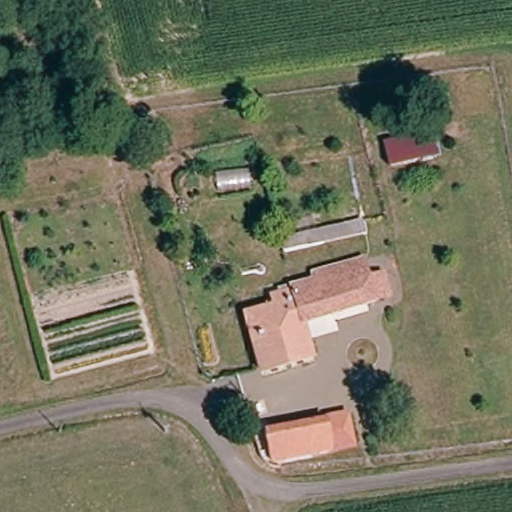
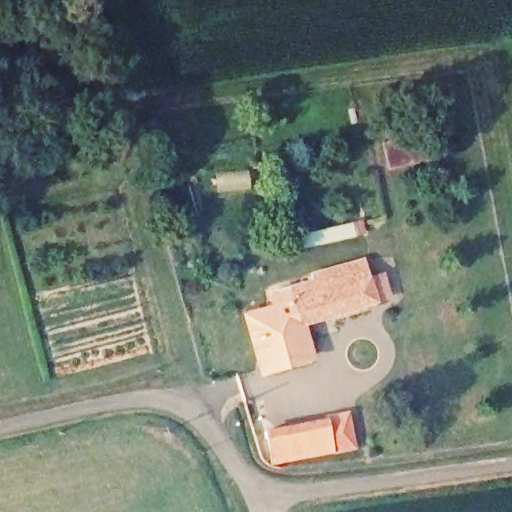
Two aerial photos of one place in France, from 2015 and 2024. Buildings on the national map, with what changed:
unchanged [(363,235),(282,255),(280,237),(360,220),(363,235)]
unchanged [(274,310),(270,293),(285,288),(283,279),(311,271),(315,285),(381,266),(388,303),(305,326),(313,355),(260,373),(246,318),(274,310)]
unchanged [(356,447),(270,465),(262,427),(349,410),(356,447)]

